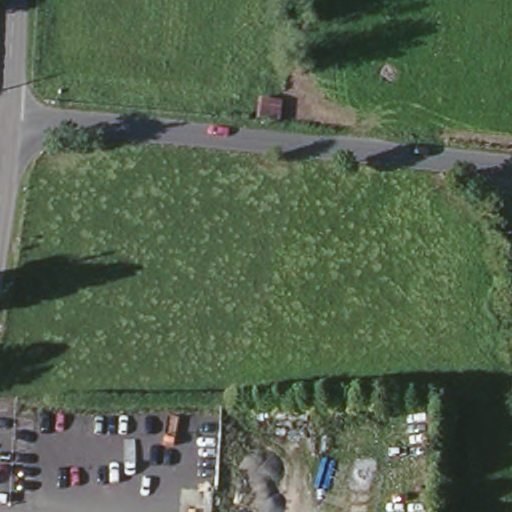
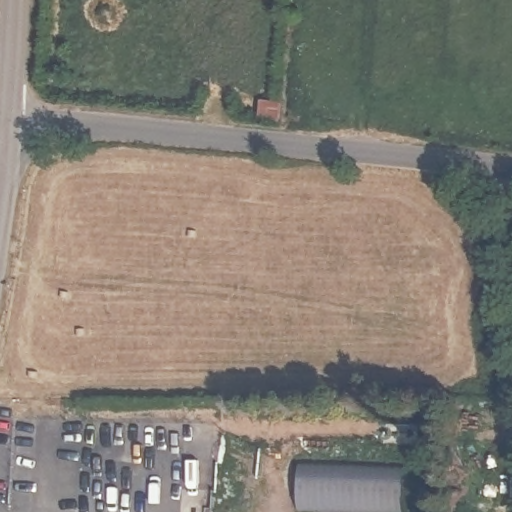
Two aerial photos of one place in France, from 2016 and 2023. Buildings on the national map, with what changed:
new [(402,475),(401,510),(300,510),(299,472),(402,475)]

